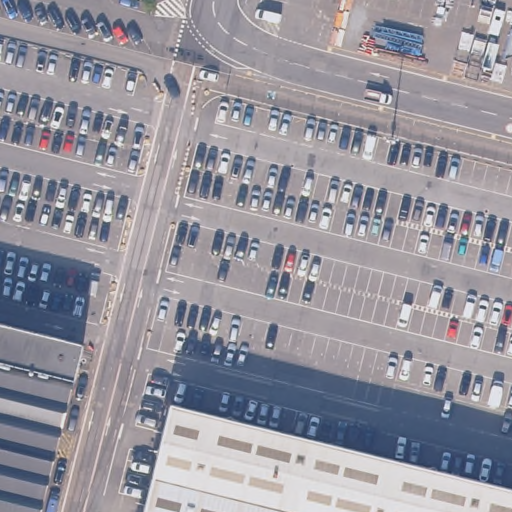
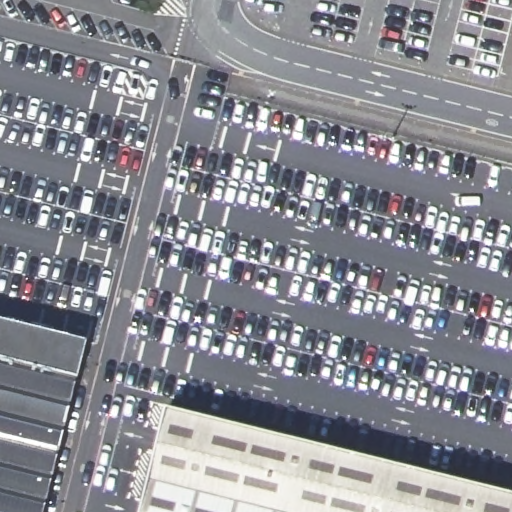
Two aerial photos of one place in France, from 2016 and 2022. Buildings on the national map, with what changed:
unchanged [(86,343),(44,512),(0,512),(0,322),(86,343)]
unchanged [(512,512),(144,512),(171,400),(512,484),(512,512)]

